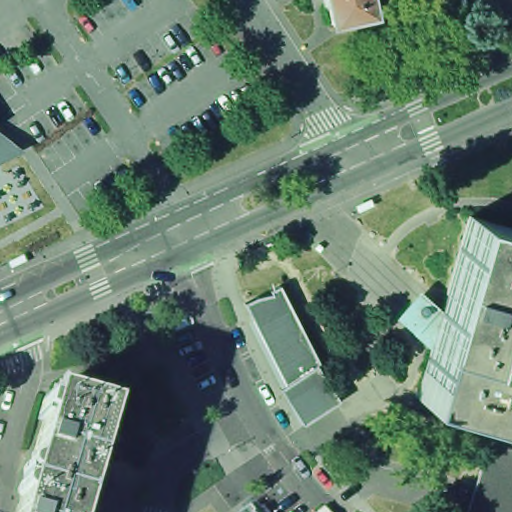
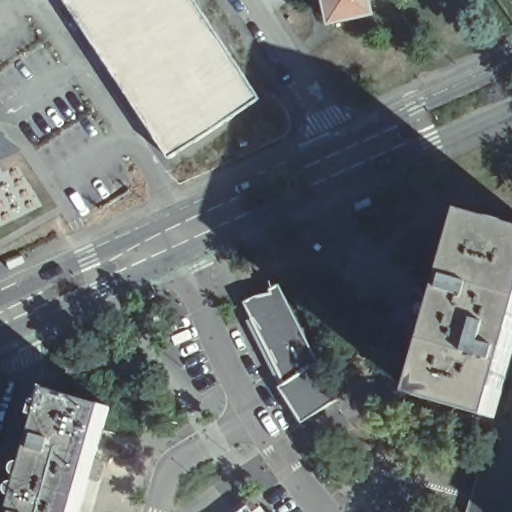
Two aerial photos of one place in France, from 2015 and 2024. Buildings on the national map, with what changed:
new [(165,161),(60,0),(189,0),(255,101),(165,161)]
unchanged [(363,16),(332,23),(326,0),(370,0),(372,14),(363,16)]
unchanged [(9,150),(22,169),(30,163),(46,187),(15,208),(0,219),(0,112),(20,142),(9,150)]
unchanged [(418,289),(428,298),(440,309),(467,214),(512,227),(512,355),(494,418),(416,396),(430,348),(417,336),(395,315),(418,289)]
unchanged [(257,296),(270,293),(270,290),(270,289),(280,284),(288,301),(318,362),(315,364),(285,383),(265,343),(244,302),(257,296)]
unchanged [(338,399),(304,422),(285,383),(315,364),(338,399)]
unchanged [(57,391),(115,408),(88,498),(30,482),(57,391)]
unchanged [(85,512),(22,512),(30,482),(88,498),(85,512)]
unchanged [(245,510),(244,508),(247,506),(252,512),(243,512),(245,510)]

